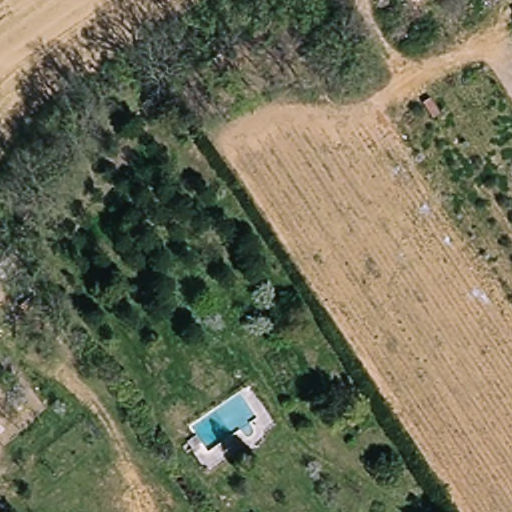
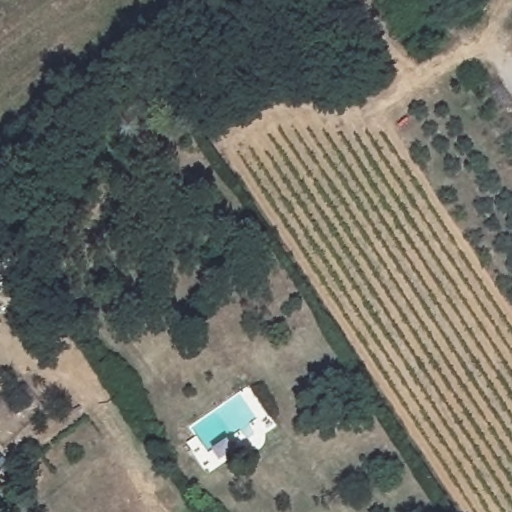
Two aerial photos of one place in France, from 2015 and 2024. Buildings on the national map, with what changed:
unchanged [(2,290),(0,294),(0,289),(2,290)]

